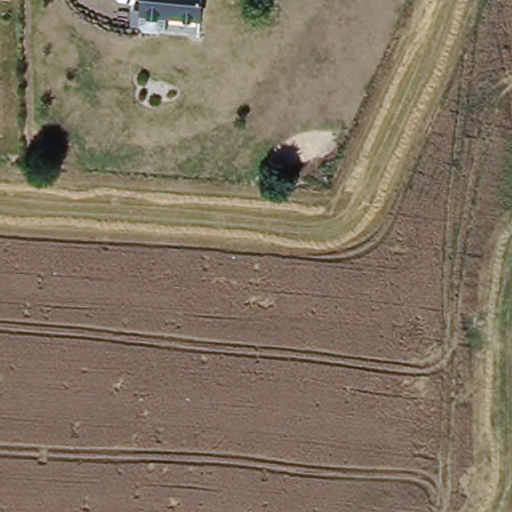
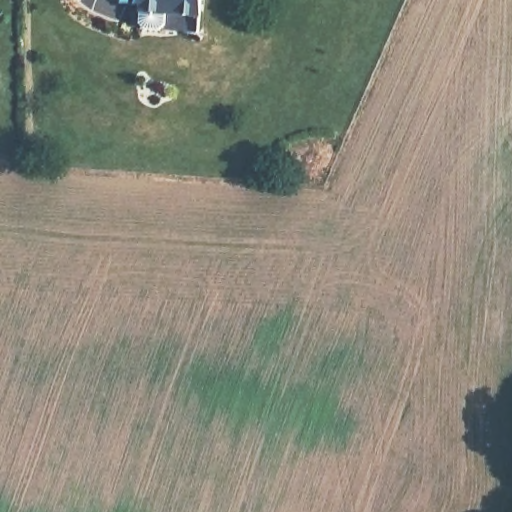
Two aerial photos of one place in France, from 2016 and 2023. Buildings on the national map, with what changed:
unchanged [(140,13),(140,0),(202,0),(202,15),(140,13)]

